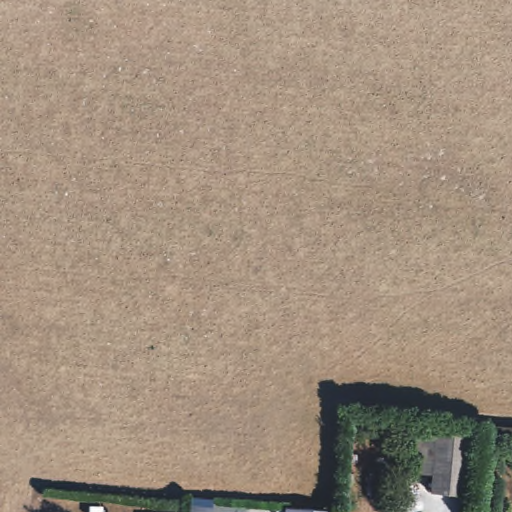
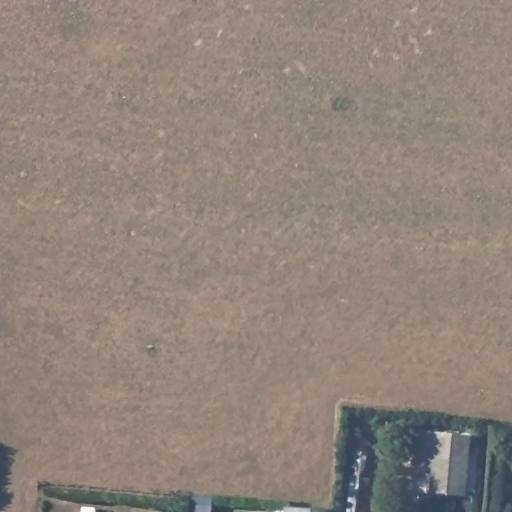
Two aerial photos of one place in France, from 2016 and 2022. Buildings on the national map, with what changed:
unchanged [(466,499),(427,496),(428,476),(407,475),(412,434),(471,439),(466,499)]
unchanged [(317,511),(324,512),(286,512),(286,508),(317,511)]

